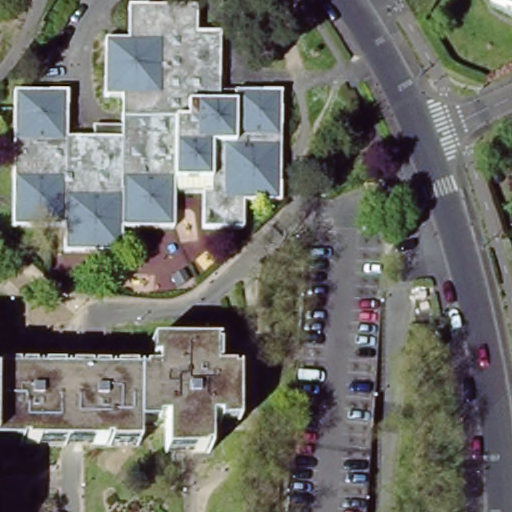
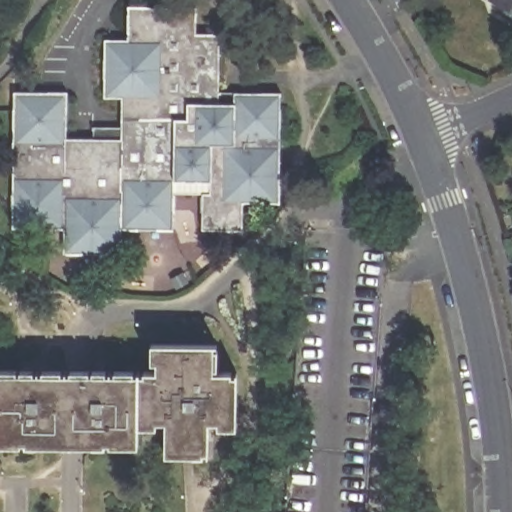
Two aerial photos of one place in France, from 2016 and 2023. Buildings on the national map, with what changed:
unchanged [(487,3),(489,0),(512,0),(512,16),(487,3)]
unchanged [(121,130),(122,101),(104,100),(105,44),(127,45),(128,11),(197,12),(197,37),(221,38),(219,97),(281,98),(277,206),(243,207),(242,233),(202,234),(202,197),(210,197),(210,184),(173,184),(172,233),(121,233),(121,255),(62,255),(62,230),(11,230),(12,96),(65,97),(65,142),(93,142),(93,130),(121,130)]
unchanged [(88,372),(150,373),(150,345),(215,346),(215,373),(236,374),(234,428),(208,428),(207,455),(165,455),(165,428),(138,427),(137,448),(84,447),(68,447),(0,447),(0,372),(74,372),(88,372)]

